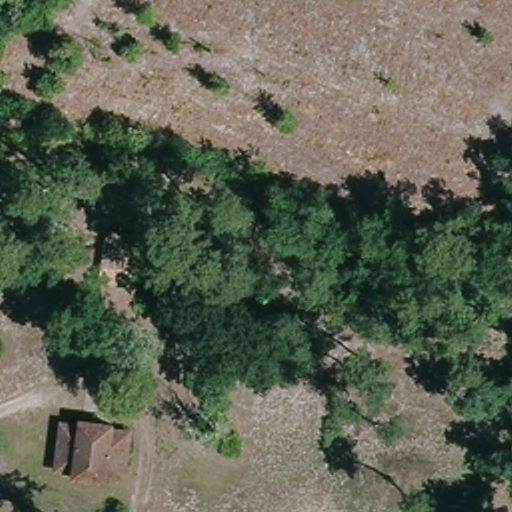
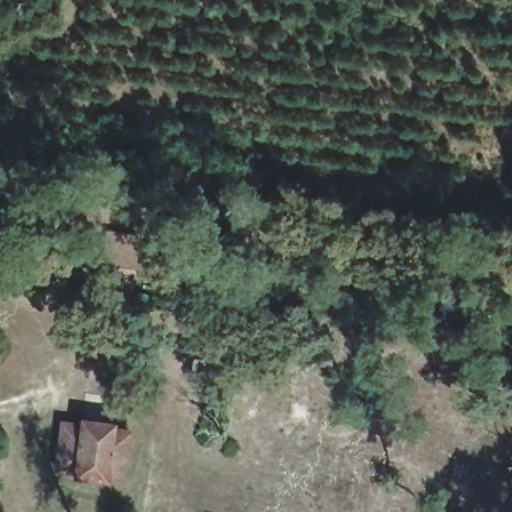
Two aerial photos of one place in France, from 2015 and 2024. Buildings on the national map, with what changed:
unchanged [(130,476),(112,476),(110,484),(87,482),(88,472),(66,468),(71,425),(89,427),(89,418),(117,422),(117,435),(134,435),(130,476)]

